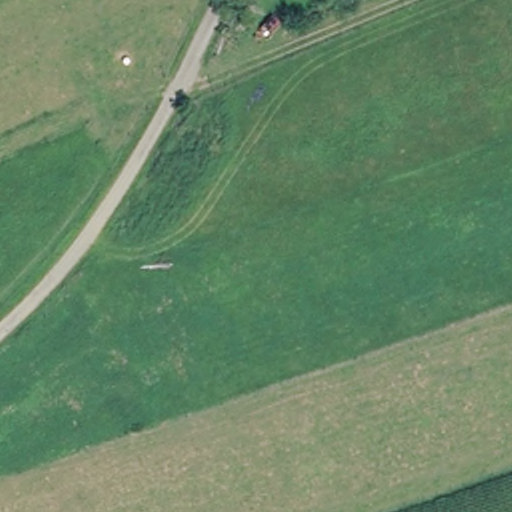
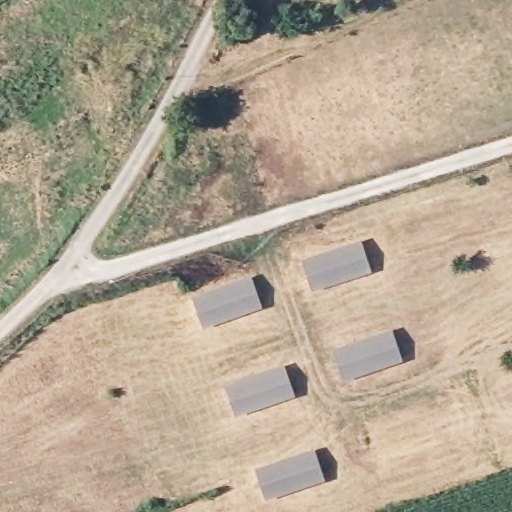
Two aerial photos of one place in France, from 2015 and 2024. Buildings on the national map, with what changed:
new [(360,241),(372,273),(311,293),(302,261),(360,241)]
new [(252,277),(263,307),(204,329),(193,298),(252,277)]
new [(393,330),(403,361),(342,380),(334,348),(393,330)]
new [(295,394),(235,412),(226,382),(285,364),(295,394)]
new [(422,415),(431,446),(372,465),(363,433),(422,415)]
new [(324,478),(266,498),(256,467),(314,449),(324,478)]

